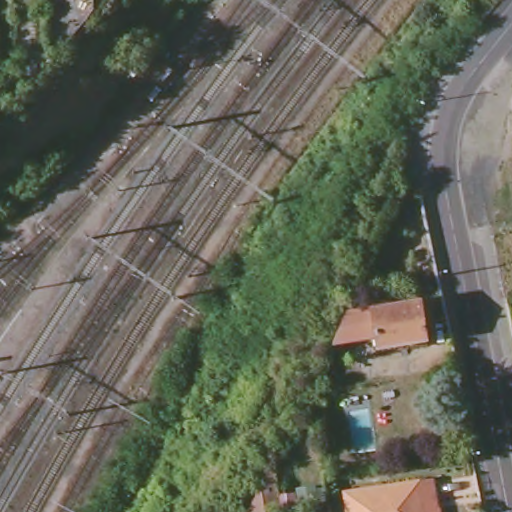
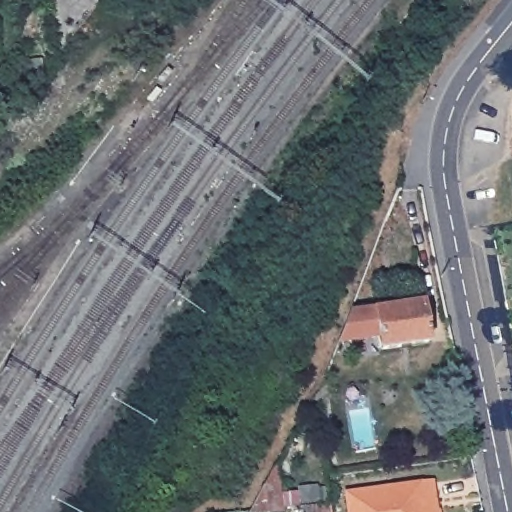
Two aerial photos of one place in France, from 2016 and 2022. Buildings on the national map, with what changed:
unchanged [(429,344),(377,352),(376,340),(335,346),(347,315),(422,304),(429,344)]
unchanged [(284,512),(250,512),(274,468),(284,512)]
unchanged [(436,500),(422,502),(424,512),(349,512),(347,494),(435,484),(436,500)]

